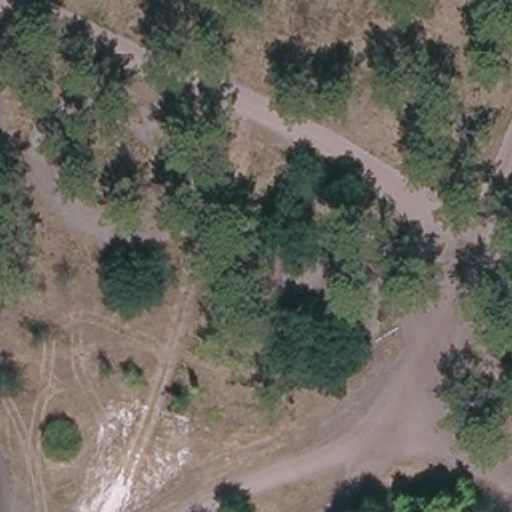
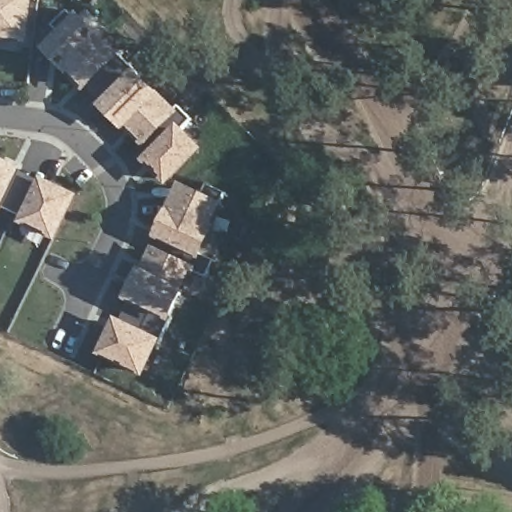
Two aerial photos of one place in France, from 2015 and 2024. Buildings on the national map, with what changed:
new [(0,39),(0,0),(33,0),(27,41),(0,39)]
new [(122,55),(86,93),(44,51),(79,13),(122,55)]
new [(181,114),(146,151),(100,109),(135,73),(181,114)]
new [(207,151),(169,189),(143,163),(179,125),(207,151)]
new [(23,169),(22,172),(40,182),(42,178),(79,196),(56,240),(19,224),(22,216),(5,207),(1,214),(0,213),(0,158),(23,169)]
new [(227,205),(204,257),(214,262),(206,277),(196,273),(175,324),(125,301),(138,268),(146,273),(182,183),(227,205)]
new [(164,338),(146,377),(100,354),(116,317),(164,338)]

